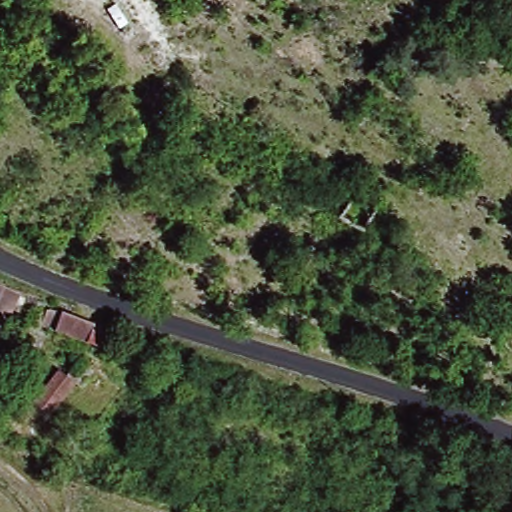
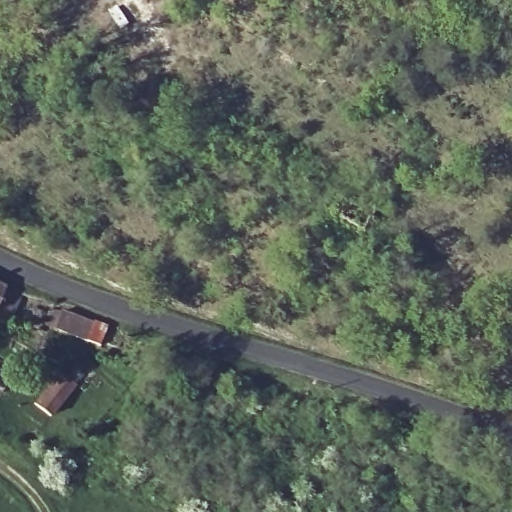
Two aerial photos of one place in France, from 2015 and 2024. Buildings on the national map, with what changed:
unchanged [(382,219),(373,234),(355,221),(365,206),(382,219)]
unchanged [(3,284),(0,291),(0,283),(3,284)]
unchanged [(62,308),(103,328),(93,348),(47,327),(62,308)]
unchanged [(53,385),(63,372),(80,385),(57,415),(38,402),(53,385)]

